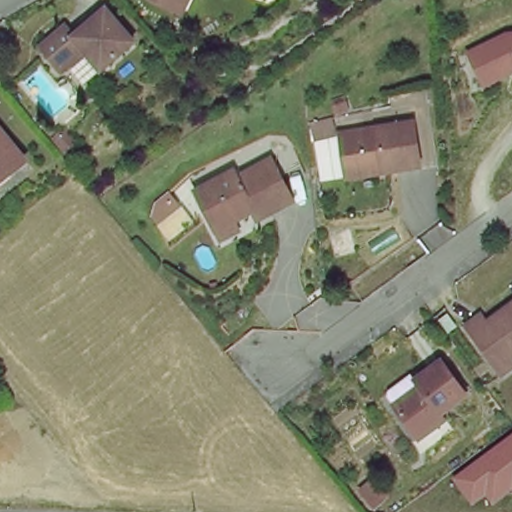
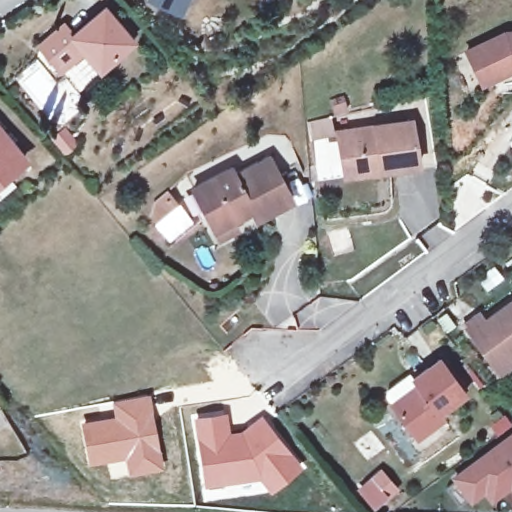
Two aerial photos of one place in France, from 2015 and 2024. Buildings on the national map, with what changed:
unchanged [(163,0),(172,0),(170,4),(163,0)]
unchanged [(132,42),(99,67),(85,51),(61,68),(41,44),(64,26),(71,34),(106,9),(132,42)]
unchanged [(512,34),(512,61),(474,68),(470,47),(492,37),(512,34)]
unchanged [(345,165),(341,128),(413,116),(418,163),(383,169),(348,176),(345,165)]
unchanged [(26,156),(0,177),(0,123),(26,156)]
unchanged [(219,236),(214,227),(193,187),(231,167),(235,173),(269,154),(292,196),(256,215),(252,207),(232,217),(237,226),(219,236)]
unchanged [(512,362),(512,363),(501,370),(499,374),(465,327),(480,316),(485,324),(512,304),(512,352),(507,355),(512,362)]
unchanged [(464,395),(440,413),(444,420),(417,439),(393,406),(387,399),(415,378),(437,360),(464,395)]
new [(115,416),(113,401),(151,394),(164,468),(127,475),(124,459),(90,467),(81,423),(115,416)]
new [(230,412),(232,430),(243,428),(262,414),(302,464),(270,491),(260,479),(206,489),(194,417),(230,412)]
unchanged [(512,492),(495,504),(488,496),(475,506),(454,478),(512,435),(512,492)]
new [(381,466),(400,488),(375,511),(357,490),(381,466)]

